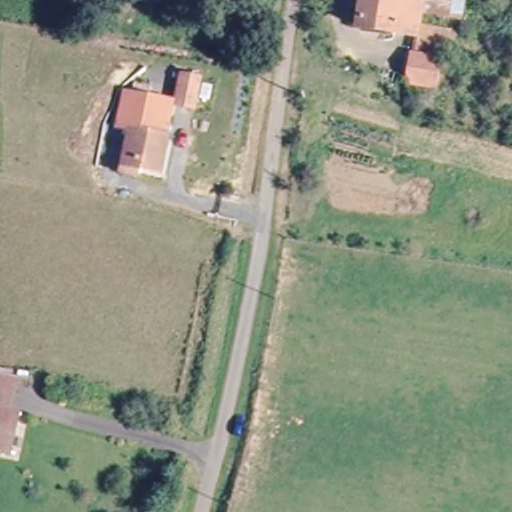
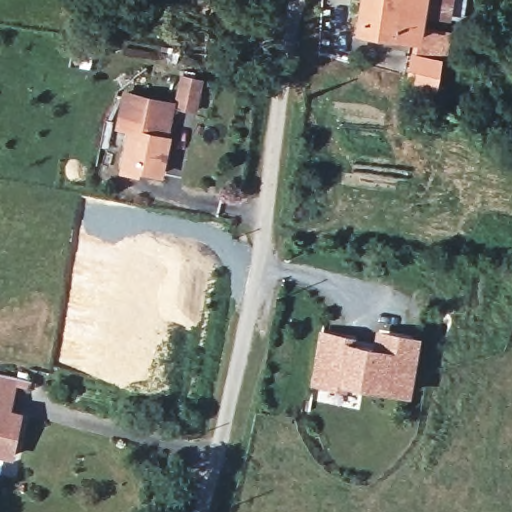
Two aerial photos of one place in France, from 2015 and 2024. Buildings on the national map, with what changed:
unchanged [(420,17),(436,20),(435,36),(426,37),(426,46),(433,47),(432,79),(406,79),(407,30),(355,27),(357,0),(420,0),(419,11),(420,17)]
unchanged [(419,11),(420,0),(447,0),(447,9),(419,11)]
unchanged [(245,26),(246,3),(258,2),(259,26),(245,26)]
unchanged [(173,105),(178,72),(206,77),(201,109),(173,105)]
unchanged [(136,172),(135,176),(122,174),(124,169),(125,163),(132,127),(120,124),(127,91),(158,97),(173,100),(167,134),(169,134),(162,171),(142,167),(141,172),(136,172)]
new [(422,335),(411,398),(387,392),(352,387),(350,393),(311,386),(319,330),(356,336),(356,343),(373,346),(375,327),(422,335)]
unchanged [(2,458),(0,458),(0,378),(11,380),(5,413),(12,417),(21,419),(11,461),(2,458)]

